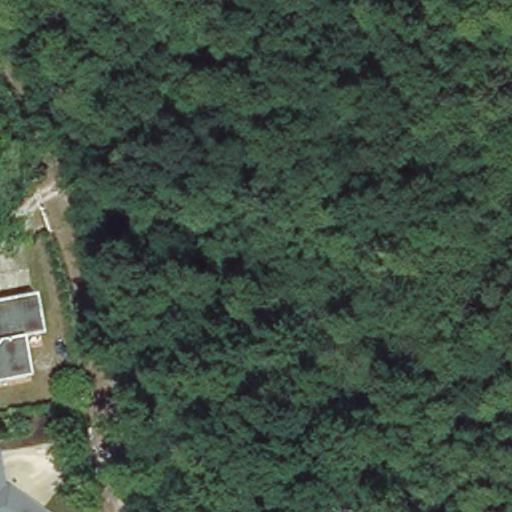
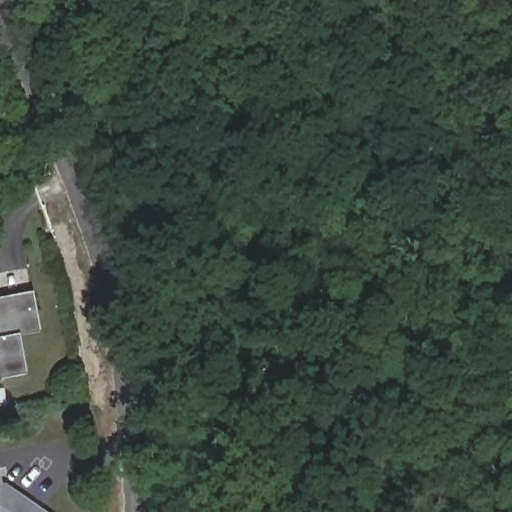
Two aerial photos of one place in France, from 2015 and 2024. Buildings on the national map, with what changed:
unchanged [(38,332),(18,336),(24,375),(0,379),(0,300),(31,294),(38,332)]
unchanged [(10,500),(13,496),(35,512),(0,512),(0,487),(2,487),(3,493),(10,500)]

